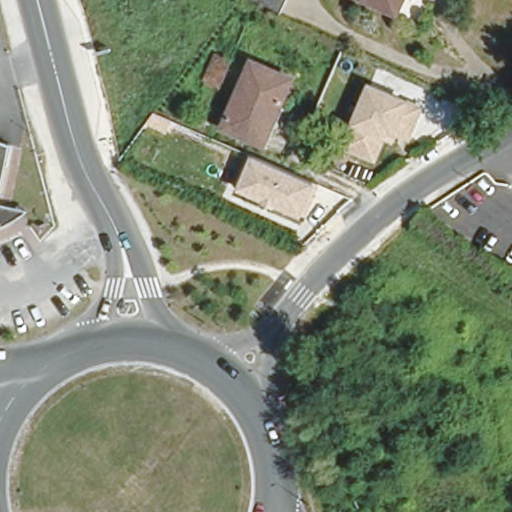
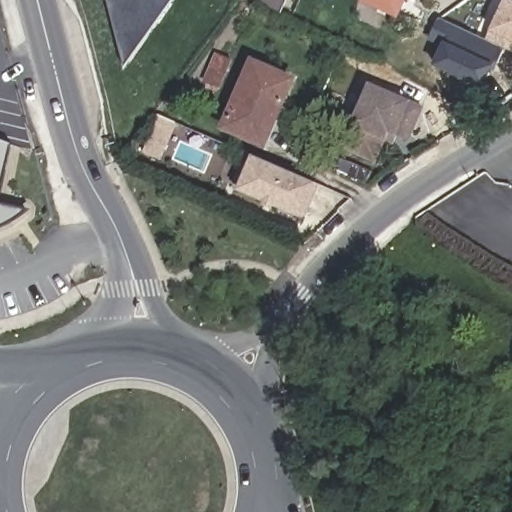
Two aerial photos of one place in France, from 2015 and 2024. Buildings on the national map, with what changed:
new [(124,69),(107,0),(173,0),(124,69)]
unchanged [(254,0),(286,0),(280,12),(254,0)]
unchanged [(395,16),(364,0),(403,0),(395,16)]
new [(512,47),(503,43),(481,89),(432,65),(441,47),(433,44),(436,38),(430,36),(438,20),(485,42),(504,0),(511,0),(512,1),(512,47)]
unchanged [(221,94),(204,86),(216,60),(233,68),(221,94)]
unchanged [(262,142),(223,126),(252,62),(290,79),(262,142)]
unchanged [(425,107),(410,143),(397,137),(393,147),(385,144),(377,165),(342,151),(351,126),(369,82),(412,100),(425,107)]
unchanged [(3,147),(0,160),(0,146),(3,147)]
unchanged [(303,218),(238,191),(252,156),(318,184),(303,218)]
unchanged [(10,218),(4,222),(0,224),(0,207),(18,212),(10,218)]

